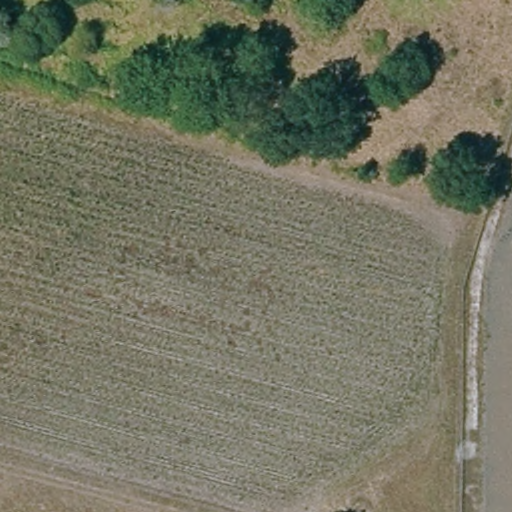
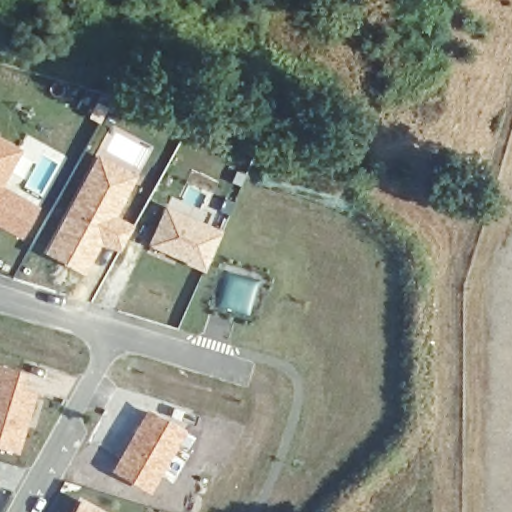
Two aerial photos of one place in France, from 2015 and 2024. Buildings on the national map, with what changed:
new [(23,149),(3,185),(40,208),(22,239),(0,227),(0,136),(23,149)]
new [(100,148),(141,171),(116,215),(133,225),(117,253),(101,246),(85,276),(42,253),(100,148)]
new [(165,203),(222,230),(203,272),(146,245),(165,203)]
new [(42,378),(19,455),(0,448),(0,363),(42,378)]
new [(147,407),(188,425),(177,450),(151,495),(109,472),(147,407)]
new [(80,497),(107,512),(71,512),(80,497)]

